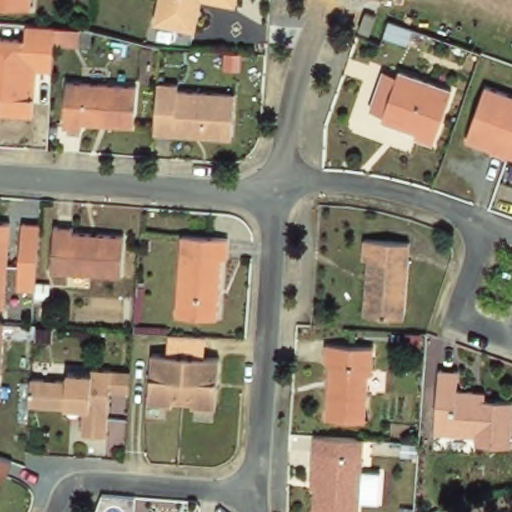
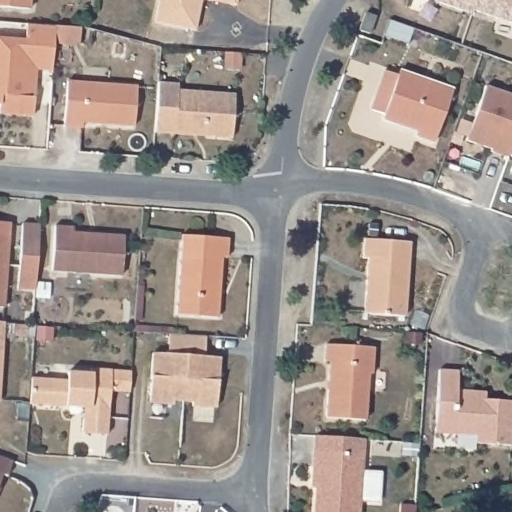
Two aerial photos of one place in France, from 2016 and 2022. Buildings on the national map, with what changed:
unchanged [(0,7),(0,0),(30,0),(30,9),(0,7)]
unchanged [(199,16),(195,35),(155,26),(159,0),(237,0),(235,10),(201,5),(199,16)]
new [(472,14),(432,0),(476,0),(512,0),(512,22),(473,10),(472,14)]
unchanged [(377,19),(372,34),(362,31),(368,16),(377,19)]
unchanged [(0,120),(0,43),(18,45),(25,45),(26,29),(41,30),(46,30),(55,30),(81,32),(80,47),(54,45),(52,66),(52,75),(35,74),(35,81),(32,121),(0,120)]
unchanged [(447,95),(428,147),(409,140),(411,136),(376,124),(377,119),(365,114),(373,89),(378,75),(392,80),(393,76),(447,95)]
unchanged [(137,85),(134,126),(83,122),(82,127),(64,126),(67,81),(137,85)]
unchanged [(178,84),(177,90),(234,94),(231,138),(206,136),(207,132),(173,130),(173,134),(154,132),(159,82),(178,84)]
unchanged [(512,156),(507,155),(506,159),(490,152),(491,149),(468,140),(487,86),(512,95),(512,156)]
unchanged [(9,221),(6,263),(3,305),(0,305),(0,220),(9,221)]
unchanged [(22,222),(40,224),(37,255),(36,288),(18,287),(20,264),(21,254),(22,222)]
unchanged [(74,226),(73,231),(125,235),(122,275),(52,270),(56,225),(74,226)]
unchanged [(224,237),(222,257),(217,257),(214,317),(172,315),(177,235),(224,237)]
unchanged [(360,256),(362,238),(407,242),(400,316),(361,313),(365,256),(360,256)]
unchanged [(322,361),(322,344),(370,347),(368,372),(363,372),(361,420),(323,418),(327,362),(322,361)]
unchanged [(185,360),(218,362),(215,411),(192,410),(192,404),(182,403),(171,403),(171,408),(149,407),(152,358),(185,360)]
unchanged [(62,383),(62,375),(87,376),(87,371),(107,372),(127,374),(125,395),(106,393),(102,439),(79,438),(79,425),(84,425),(84,415),(77,415),(72,421),(67,421),(64,413),(25,411),(27,380),(62,383)]
unchanged [(477,446),(477,438),(436,436),(440,374),(459,375),(457,393),(473,394),(486,395),(486,402),(512,404),(512,434),(511,448),(477,446)]
unchanged [(312,466),(315,434),(364,436),(357,512),(314,512),(317,466),(312,466)]
unchanged [(15,465),(9,481),(2,480),(0,485),(0,460),(15,465)]

